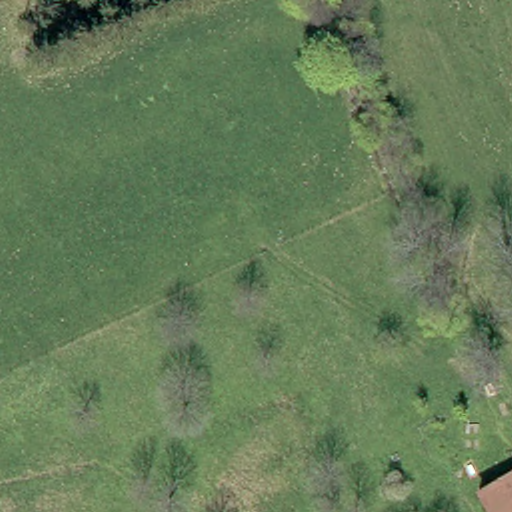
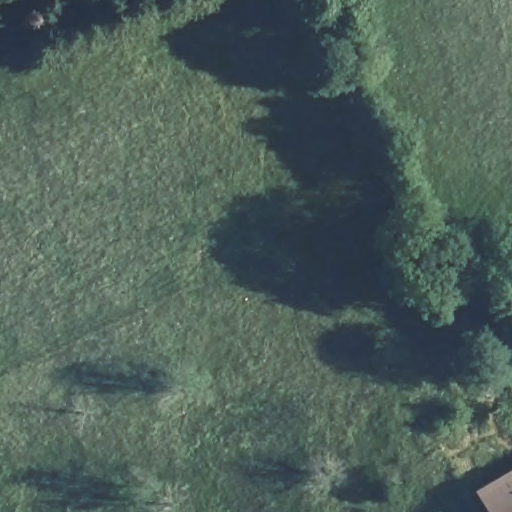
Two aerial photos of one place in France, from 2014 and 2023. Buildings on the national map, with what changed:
unchanged [(472,483),(512,462),(512,512),(487,512),(472,483)]

